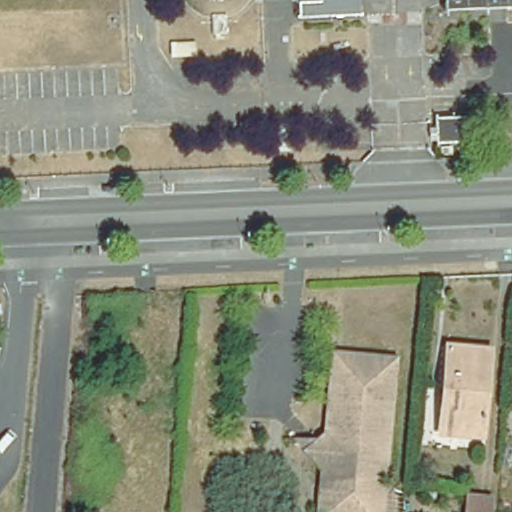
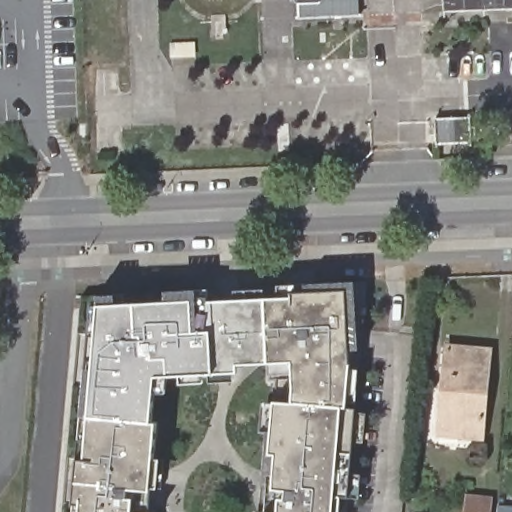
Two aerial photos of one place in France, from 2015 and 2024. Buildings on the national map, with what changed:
unchanged [(354,20),(293,22),(292,0),(353,0),(354,20)]
unchanged [(439,15),(438,0),(512,0),(512,12),(439,15)]
unchanged [(430,119),(463,117),(465,142),(432,144),(430,119)]
new [(342,512),(273,512),(279,453),(272,452),(277,402),(294,402),(295,388),(294,359),(237,362),(238,371),(215,373),(162,376),(151,491),(149,512),(80,512),(100,295),(199,290),(355,280),(359,347),(342,512)]
unchanged [(439,435),(448,347),(489,351),(481,438),(439,435)]
demolished [(373,507),(372,512),(313,512),(315,476),(295,452),(322,434),(328,434),(335,362),(388,367),(379,459),(384,460),(380,507),(373,507)]
unchanged [(485,512),(460,512),(461,500),(486,502),(485,512)]

